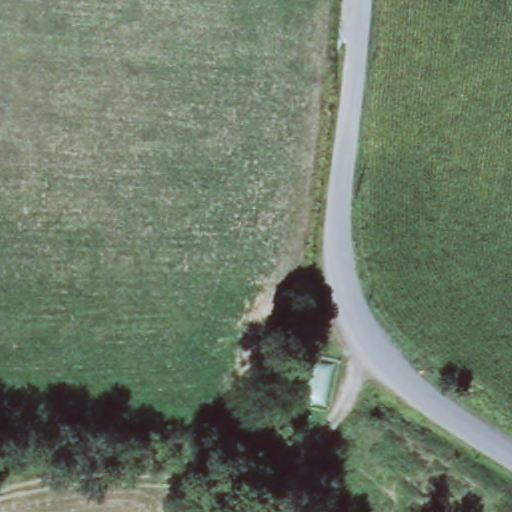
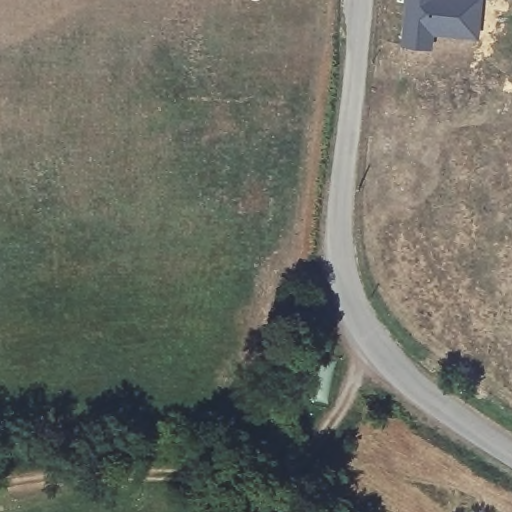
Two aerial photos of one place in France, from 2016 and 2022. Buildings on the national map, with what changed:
new [(408,0),(484,0),(481,40),(433,37),(432,52),(404,50),(408,0)]

